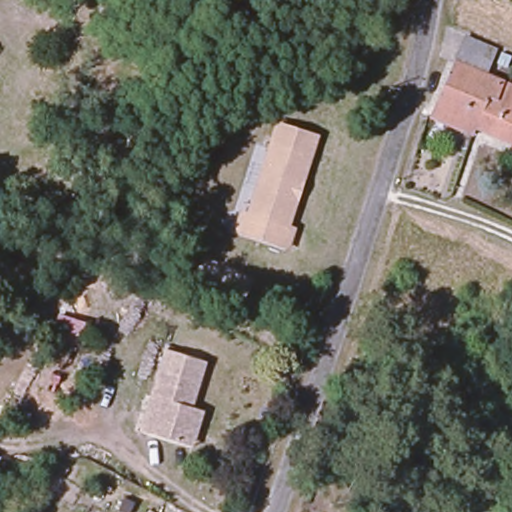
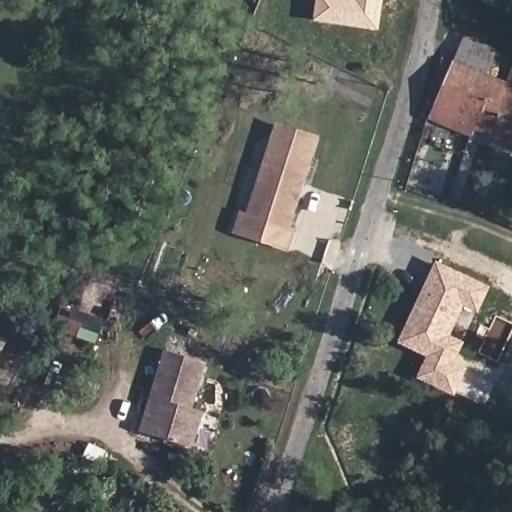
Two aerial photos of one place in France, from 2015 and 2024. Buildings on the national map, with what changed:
new [(313,20),(316,0),(383,0),(378,30),(313,20)]
unchanged [(428,125),(461,45),(495,59),(485,86),(490,90),(473,135),(471,142),(428,125)]
unchanged [(490,90),(507,97),(512,99),(512,152),(473,135),(490,90)]
unchanged [(293,205),(285,235),(291,235),(286,254),(235,239),(239,222),(246,224),(265,151),(270,131),(310,142),(305,161),(298,187),(293,205)]
new [(434,261),(490,286),(477,312),(461,306),(451,335),(465,341),(456,361),(468,367),(456,397),(415,380),(425,358),(398,345),(434,261)]
unchanged [(192,451),(185,449),(150,439),(141,437),(150,400),(161,356),(200,366),(188,411),(195,413),(202,416),(192,451)]

